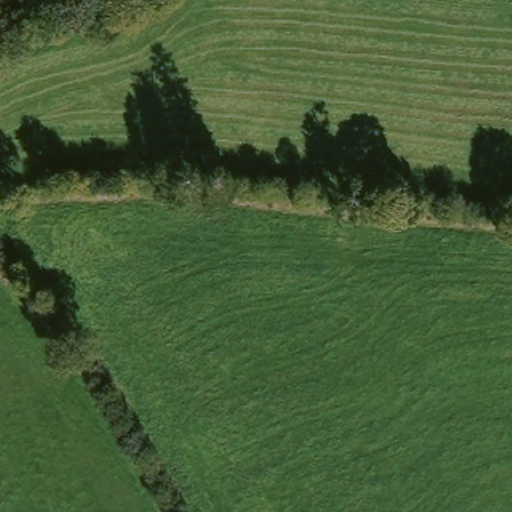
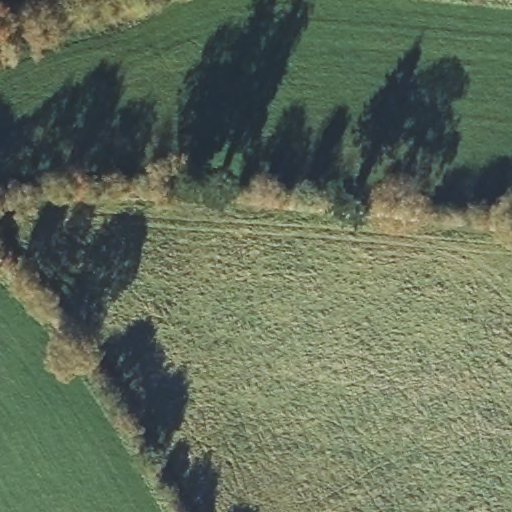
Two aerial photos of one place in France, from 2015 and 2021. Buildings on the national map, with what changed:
[]

